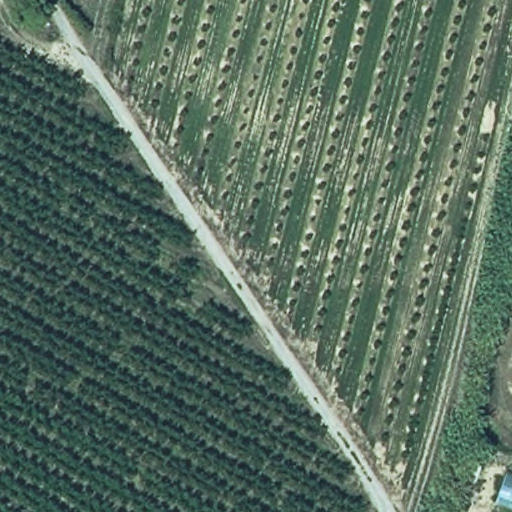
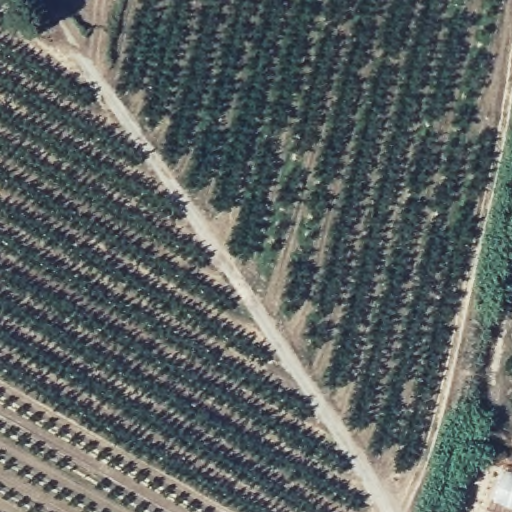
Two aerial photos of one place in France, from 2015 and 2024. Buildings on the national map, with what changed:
unchanged [(505,471),(512,473),(512,512),(491,512),(505,471)]

